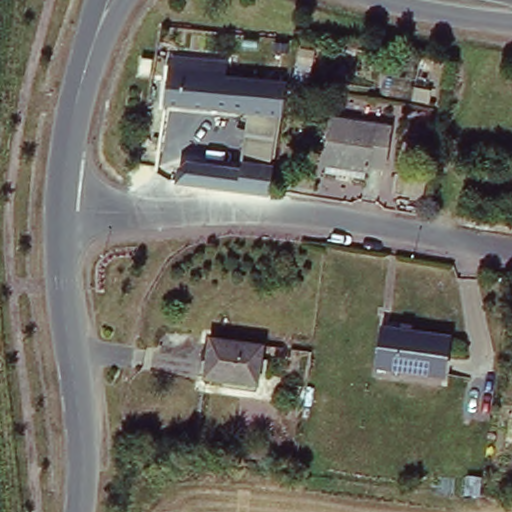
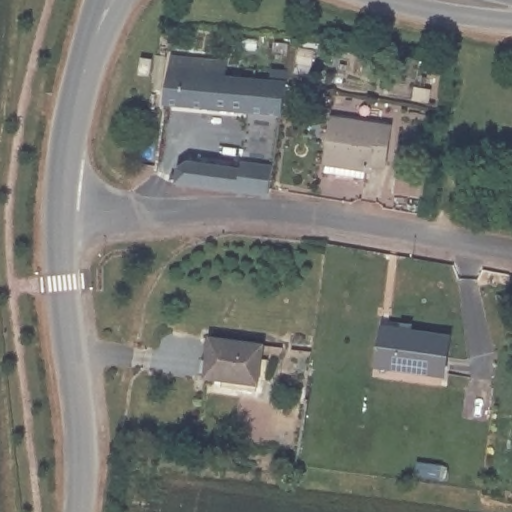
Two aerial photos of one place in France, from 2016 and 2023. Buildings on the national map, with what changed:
unchanged [(179,166),(189,158),(242,167),(250,113),(165,100),(172,53),(226,60),(225,73),(288,80),(270,191),(177,179),(179,166)]
unchanged [(153,60),(151,77),(140,75),(142,58),(153,60)]
unchanged [(417,88),(431,91),(430,103),(415,102),(417,88)]
unchanged [(365,175),(325,168),(326,158),(332,115),(391,125),(385,161),(370,159),(368,165),(367,165),(365,175)]
unchanged [(392,169),(422,174),(418,194),(388,190),(392,169)]
unchanged [(380,334),(443,343),(439,379),(376,371),(380,334)]
unchanged [(211,335),(263,342),(258,379),(207,371),(211,335)]

